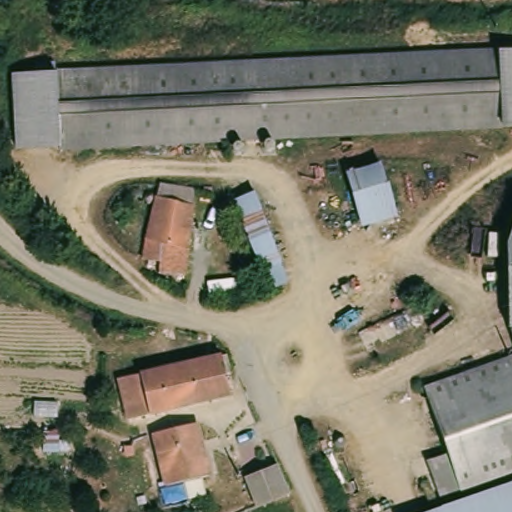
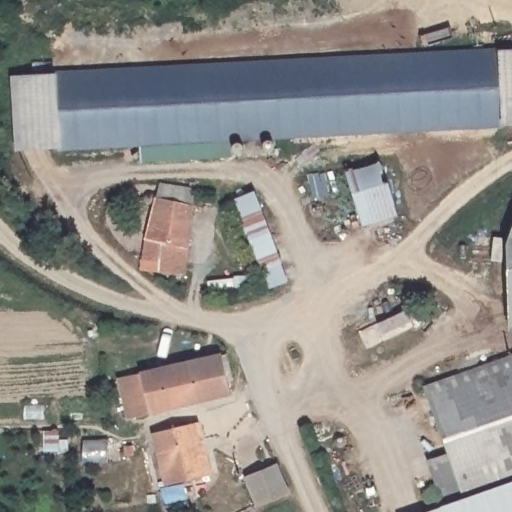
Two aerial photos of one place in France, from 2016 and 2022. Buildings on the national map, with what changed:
unchanged [(60,151),(60,149),(58,113),(56,76),(55,75),(497,51),(497,53),(501,126),(501,127),(423,131),(348,135),(60,151)]
unchanged [(512,125),(504,126),(501,126),(497,53),(512,52),(512,125)]
unchanged [(12,79),(56,76),(58,113),(60,149),(16,151),(12,79)]
unchanged [(349,173),(375,166),(387,215),(371,219),(358,222),(346,174),(349,173)]
unchanged [(193,200),(185,265),(136,264),(159,189),(193,200)]
unchanged [(512,244),(512,279),(511,248),(512,244)]
unchanged [(512,470),(463,488),(444,495),(433,462),(452,455),(428,388),(512,358),(512,470)]
unchanged [(218,359),(227,362),(234,383),(227,385),(230,398),(147,419),(128,423),(118,383),(138,378),(218,359)]
unchanged [(192,425),(208,476),(165,487),(149,437),(192,425)]
unchanged [(272,466),(283,494),(252,510),(238,481),(272,466)]
unchanged [(512,482),(512,512),(427,512),(512,482)]

